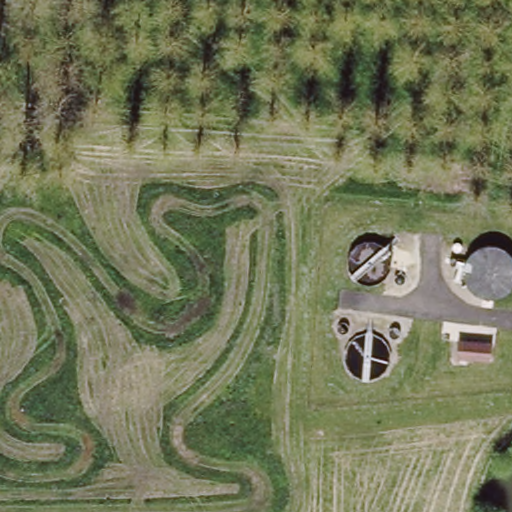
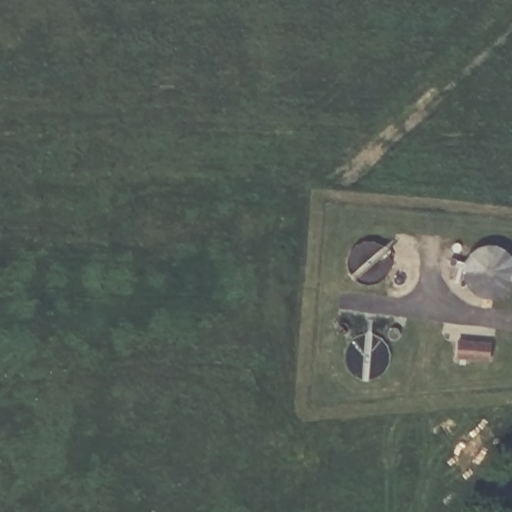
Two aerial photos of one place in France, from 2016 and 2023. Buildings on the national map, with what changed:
unchanged [(464,274),(464,266),(468,257),(473,252),(479,248),(486,246),(493,246),(499,247),(507,250),(512,254),(512,290),(504,298),(496,301),(485,301),(469,291),(465,285),(464,274)]
unchanged [(491,346),(491,361),(459,360),(459,345),(491,346)]

